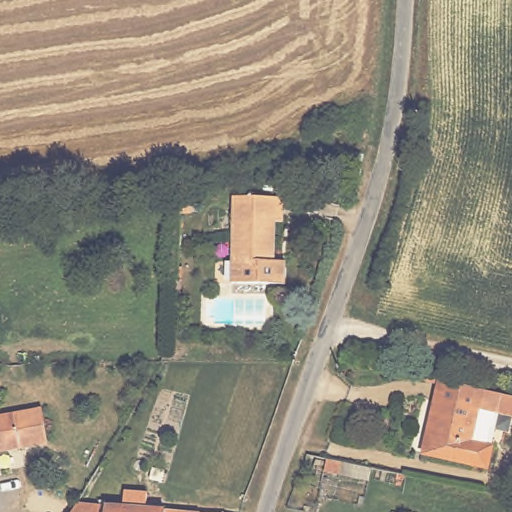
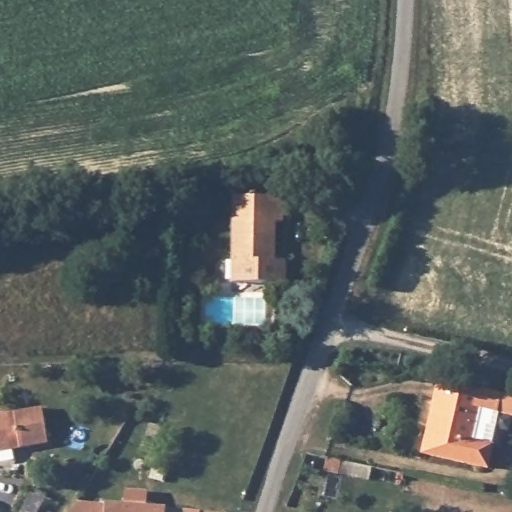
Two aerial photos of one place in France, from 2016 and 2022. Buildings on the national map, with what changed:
unchanged [(276,219),(275,257),(286,258),(286,281),(232,280),(235,192),(285,192),(285,219),(276,219)]
unchanged [(491,442),(486,464),(422,450),(438,376),(512,391),(512,413),(494,409),(487,441),(491,442)]
unchanged [(40,443),(0,449),(0,413),(34,408),(40,443)]
unchanged [(325,472),(328,461),(333,462),(341,463),(339,475),(325,472)]
unchanged [(79,500),(122,504),(123,487),(145,488),(145,506),(200,508),(200,512),(71,512),(79,500)]
unchanged [(200,508),(239,512),(200,512),(200,508)]

